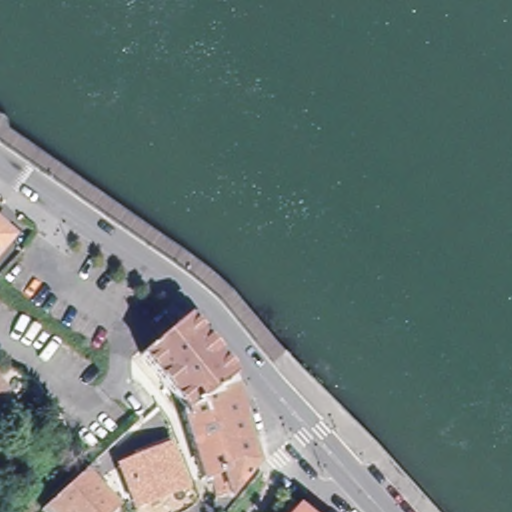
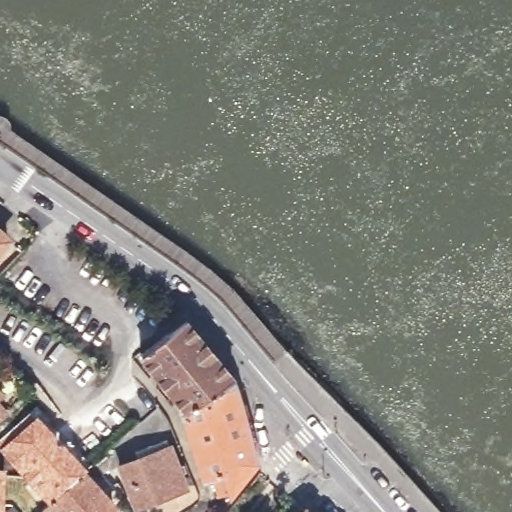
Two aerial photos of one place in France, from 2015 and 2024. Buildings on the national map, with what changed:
unchanged [(0,248),(0,231),(9,238),(0,248)]
unchanged [(195,313),(245,372),(196,406),(153,352),(159,347),(190,318),(195,313)]
unchanged [(248,376),(267,458),(242,491),(229,495),(222,472),(214,474),(192,408),(196,406),(245,372),(248,376)]
unchanged [(0,399),(0,395),(2,397),(0,399)]
new [(0,451),(0,449),(37,415),(88,468),(85,473),(50,505),(0,451)]
unchanged [(174,443),(190,491),(132,511),(115,465),(174,443)]
new [(5,507),(10,508),(15,512),(0,512),(0,467),(6,467),(5,507)]
unchanged [(108,512),(45,512),(44,511),(85,473),(114,506),(108,512)]
unchanged [(300,510),(302,512),(298,512),(300,510)]

